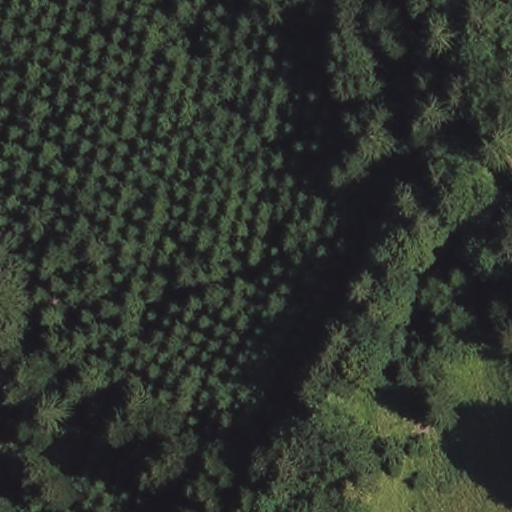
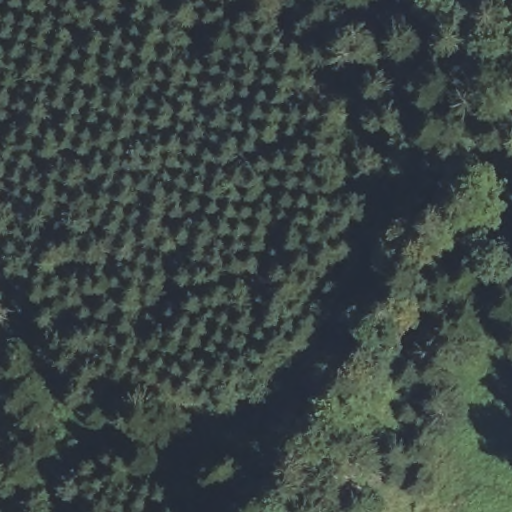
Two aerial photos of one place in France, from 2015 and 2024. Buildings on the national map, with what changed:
unchanged [(207,159),(199,119),(231,112),(239,151),(207,159)]

